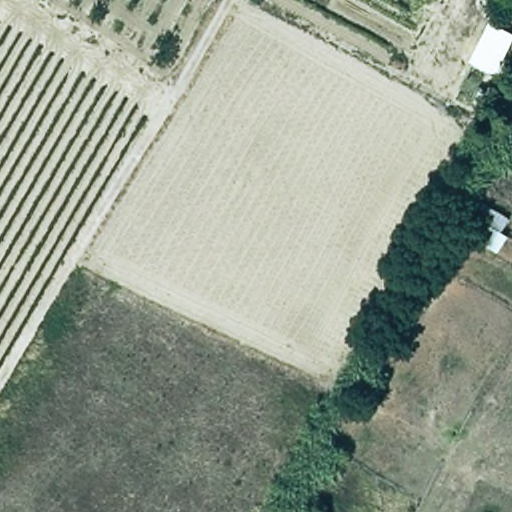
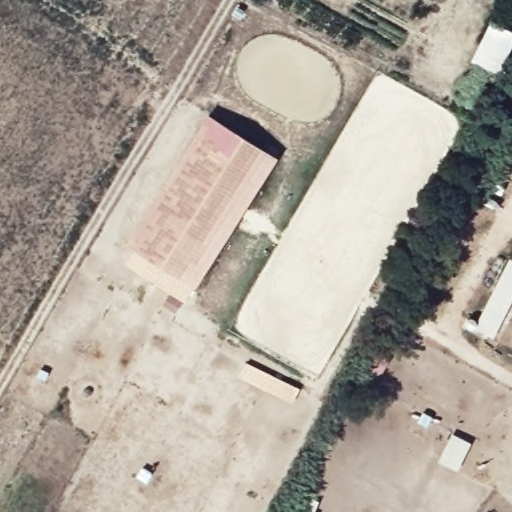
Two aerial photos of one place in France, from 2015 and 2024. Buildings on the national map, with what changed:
new [(193,288),(184,303),(124,265),(134,250),(125,244),(206,115),(277,158),(193,288)]
demolished [(512,213),(512,214),(505,230),(512,234),(502,251),(452,223),(469,190),(512,213)]
new [(473,328),(512,253),(512,301),(493,338),(473,328)]

